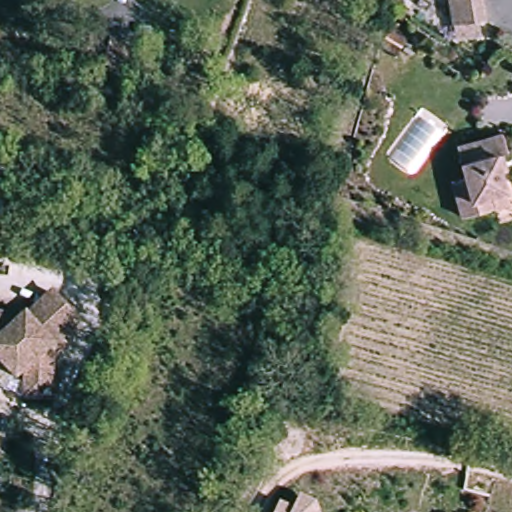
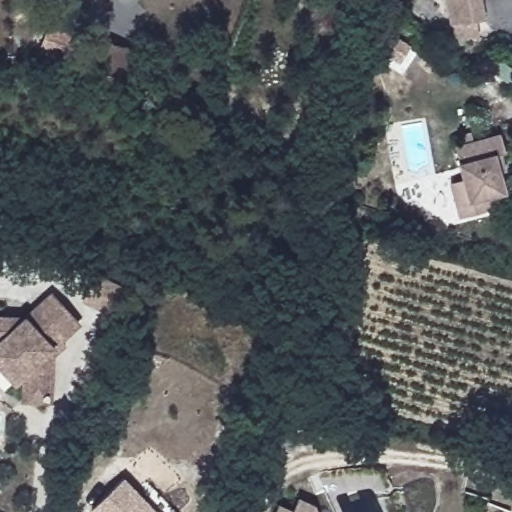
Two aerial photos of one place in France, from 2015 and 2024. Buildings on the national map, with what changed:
unchanged [(460,22),(455,0),(486,0),(490,15),(460,22)]
unchanged [(139,89),(96,76),(101,62),(106,45),(125,51),(147,58),(157,61),(147,92),(139,89)]
unchanged [(467,173),(458,138),(503,126),(507,145),(496,147),(505,184),(495,186),(497,199),(475,204),(458,208),(450,177),(467,173)]
unchanged [(0,368),(0,318),(17,319),(42,295),(70,325),(50,343),(48,402),(21,401),(22,374),(13,383),(0,368)]
new [(90,509),(125,475),(159,512),(93,512),(90,509)]
unchanged [(305,503),(322,512),(301,512),(305,503)]
unchanged [(285,509),(291,512),(284,512),(285,509)]

